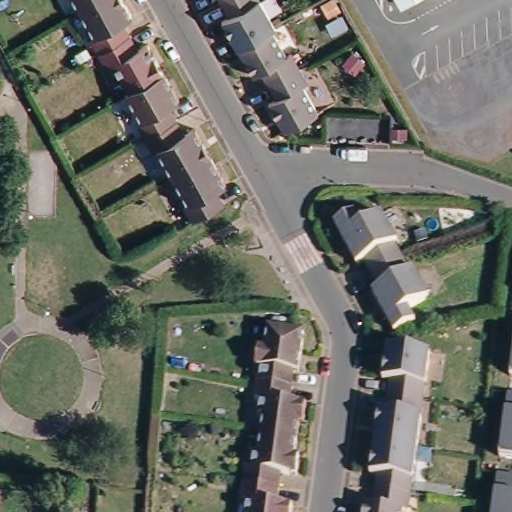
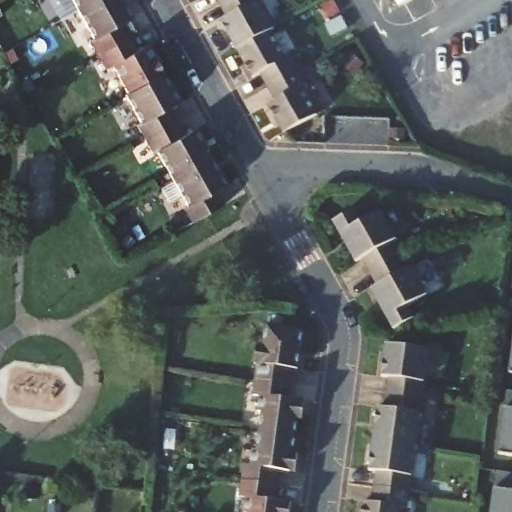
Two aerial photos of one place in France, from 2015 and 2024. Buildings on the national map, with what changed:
unchanged [(76,0),(89,0),(79,5),(76,0)]
unchanged [(123,0),(132,14),(122,20),(129,34),(95,51),(89,41),(96,37),(81,9),(79,5),(89,0),(123,0)]
unchanged [(227,6),(223,0),(264,0),(274,17),(269,20),(236,38),(221,11),(227,6)]
unchanged [(401,0),(405,0),(402,2),(401,0)]
unchanged [(259,62),(251,66),(236,38),(269,20),(284,46),(290,44),(297,59),(267,76),(259,62)]
unchanged [(157,147),(152,150),(145,136),(137,122),(142,119),(135,106),(127,91),(128,90),(124,82),(112,63),(103,67),(95,51),(129,34),(137,46),(146,41),(162,70),(171,87),(174,91),(178,99),(169,104),(173,112),(177,119),(183,131),(193,126),(204,145),(212,159),(225,183),(215,189),(223,203),(191,221),(184,208),(191,205),(175,178),(157,147)]
unchanged [(277,115),(266,95),(274,89),(267,76),(297,59),(305,72),(300,75),(317,105),(291,119),(282,124),(277,115)]
unchanged [(367,272),(361,259),(354,262),(332,222),(352,211),(357,227),(381,214),(400,241),(384,246),(391,260),(367,272)]
unchanged [(370,290),(375,285),(369,275),(367,272),(391,260),(397,275),(408,268),(425,298),(404,310),(410,322),(392,330),(370,290)]
unchanged [(256,361),(255,360),(257,341),(262,341),(265,320),(293,323),(303,325),(298,365),(294,363),(292,378),(255,373),(256,361)]
unchanged [(389,392),(390,385),(391,377),(385,375),(387,354),(389,344),(399,346),(431,350),(425,397),(389,392)]
unchanged [(511,373),(512,365),(512,374),(511,373)]
unchanged [(302,413),(302,415),(298,415),(296,432),(258,427),(261,410),(257,410),(259,391),(252,391),(255,373),(292,378),(291,386),(289,394),(300,395),(305,396),(302,413)]
unchanged [(380,410),(387,410),(389,392),(425,397),(417,447),(375,442),(380,410)]
unchanged [(512,394),(512,456),(500,453),(507,393),(512,394)]
unchanged [(291,467),(280,465),(277,481),(241,475),(242,461),(251,461),(252,446),(256,446),(258,427),(296,432),(293,448),(297,448),(297,450),(295,467),(291,467)]
unchanged [(376,488),(379,472),(371,471),(375,442),(417,447),(411,494),(376,488)]
unchanged [(512,475),(512,512),(492,512),(497,473),(512,475)]
unchanged [(247,511),(245,510),(247,494),(239,493),(241,475),(277,481),(276,496),(286,497),(291,498),(289,512),(247,512),(247,511)]
unchanged [(366,502),(374,502),(376,488),(411,494),(408,508),(404,507),(403,512),(364,512),(366,502)]

